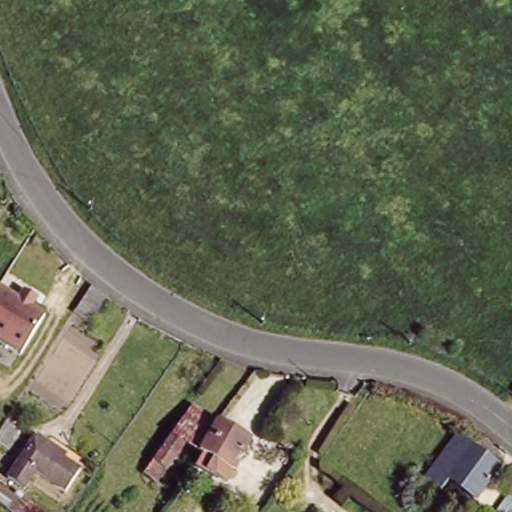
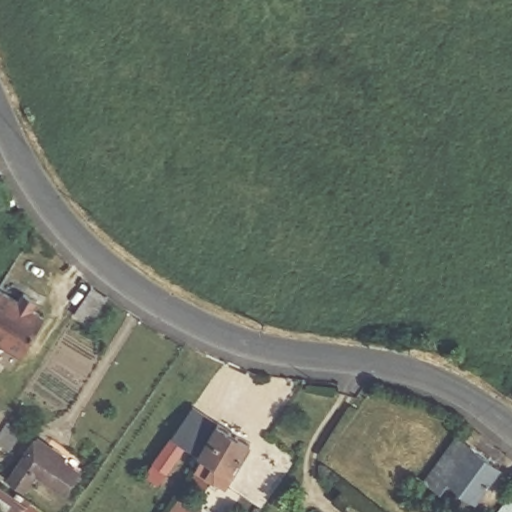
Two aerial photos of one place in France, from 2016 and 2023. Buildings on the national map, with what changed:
unchanged [(18,295),(23,288),(39,298),(35,306),(46,312),(23,354),(0,340),(0,284),(18,295)]
unchanged [(91,286),(108,297),(91,324),(73,313),(91,286)]
unchanged [(159,479),(146,469),(195,401),(217,417),(196,447),(186,441),(159,479)]
unchanged [(9,449),(0,443),(0,432),(8,421),(11,415),(19,420),(15,426),(21,430),(9,449)]
unchanged [(226,480),(206,468),(213,456),(203,451),(221,420),(251,438),(226,480)]
unchanged [(459,434),(499,464),(477,495),(436,465),(459,434)]
unchanged [(48,445),(52,440),(67,450),(63,455),(79,465),(65,486),(37,467),(25,484),(10,473),(34,436),(48,445)]
unchanged [(512,484),(512,496),(506,492),(512,484)]
unchanged [(15,497),(7,510),(0,505),(0,486),(15,497)]
unchanged [(158,497),(165,486),(171,491),(164,501),(158,497)]

